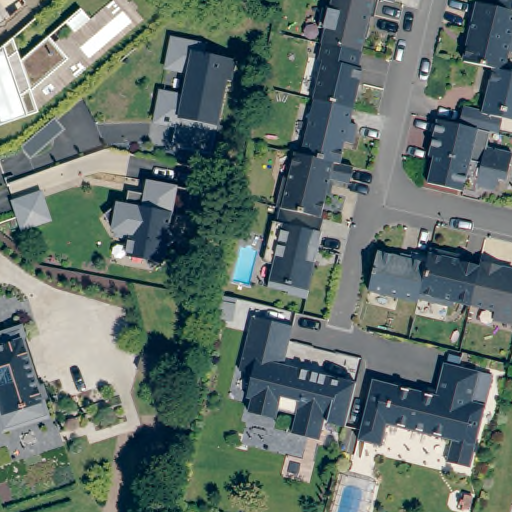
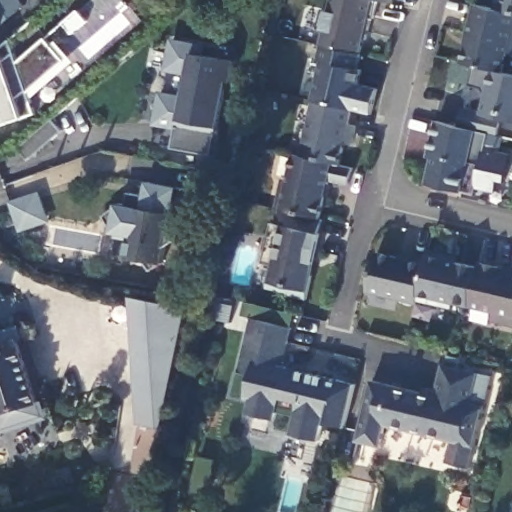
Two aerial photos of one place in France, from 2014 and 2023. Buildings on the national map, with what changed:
unchanged [(24,6),(2,24),(0,25),(0,0),(21,0),(24,6)]
unchanged [(369,15),(365,14),(363,20),(366,20),(362,36),(360,35),(356,50),(318,41),(317,41),(321,26),(313,24),(318,5),(325,7),(327,0),(373,0),(369,15)]
unchanged [(498,6),(512,9),(512,50),(503,49),(499,68),(489,66),(484,65),(479,63),(460,59),(466,34),(463,33),(468,15),(470,15),(474,0),(493,5),(498,6)]
unchanged [(493,5),(495,0),(512,0),(512,9),(498,6),(493,5)]
unchanged [(208,44),(206,55),(234,61),(220,127),(213,152),(172,147),(175,131),(153,126),(161,91),(183,94),(187,76),(164,72),(171,37),(208,44)]
unchanged [(67,64),(29,97),(35,114),(25,117),(0,127),(0,47),(11,39),(20,62),(45,38),(67,64)]
unchanged [(358,66),(348,106),(310,97),(309,97),(318,58),(314,57),(318,41),(356,50),(357,50),(354,66),(358,66)]
unchanged [(479,110),(489,66),(499,68),(512,71),(512,112),(500,110),(495,132),(485,130),(480,128),(474,127),(455,122),(459,105),(479,110)]
unchanged [(348,106),(345,120),(352,122),(348,141),(341,139),(335,161),(297,152),(310,97),(348,106)]
unchanged [(424,153),(433,117),(455,122),(474,127),(480,128),(485,130),(482,145),(507,151),(500,179),(494,177),(491,188),(473,184),(471,191),(459,188),(423,180),(429,154),(424,153)]
unchanged [(65,131),(30,162),(18,150),(53,121),(65,131)]
unchanged [(297,152),(335,161),(349,164),(345,181),(325,176),(316,214),(287,207),(274,204),(273,204),(279,176),(285,172),(290,150),(297,152)]
unchanged [(188,216),(174,214),(170,231),(176,240),(166,247),(165,263),(157,263),(148,271),(143,262),(125,259),(130,240),(113,237),(107,217),(117,205),(124,206),(126,192),(144,194),(146,183),(178,188),(191,191),(188,216)]
unchanged [(50,222),(20,233),(10,201),(41,191),(50,222)]
unchanged [(267,218),(270,219),(274,204),(287,207),(316,214),(308,253),(304,252),(301,263),(308,265),(300,295),(282,291),(282,288),(262,283),(267,261),(257,258),(267,218)]
unchanged [(407,254),(424,258),(426,251),(444,255),(448,261),(476,267),(477,263),(498,268),(497,273),(512,277),(512,327),(489,321),(491,312),(466,307),(450,302),(443,306),(414,300),(413,303),(365,292),(373,253),(406,261),(407,254)]
unchanged [(232,322),(204,317),(209,295),(236,300),(232,322)]
new [(131,297),(187,308),(163,428),(139,423),(131,297)]
unchanged [(285,364),(281,363),(280,366),(336,379),(335,382),(339,382),(339,380),(357,385),(346,428),(328,424),(329,422),(325,421),(320,441),(319,441),(320,438),(295,432),(294,435),(293,435),(297,417),(279,412),(277,420),(276,420),(276,417),(251,411),(251,413),(250,413),(253,400),(248,399),(254,375),(241,372),(250,333),(255,335),(258,319),(294,327),(285,364)]
unchanged [(19,346),(39,407),(0,420),(0,352),(19,346)]
unchanged [(437,397),(445,365),(493,377),(470,468),(447,463),(452,442),(387,426),(382,447),(359,442),(374,382),(437,397)]
unchanged [(0,430),(0,420),(39,407),(46,420),(2,435),(0,430)]

